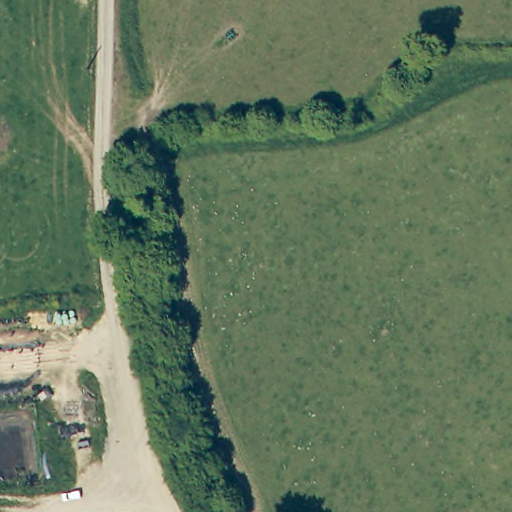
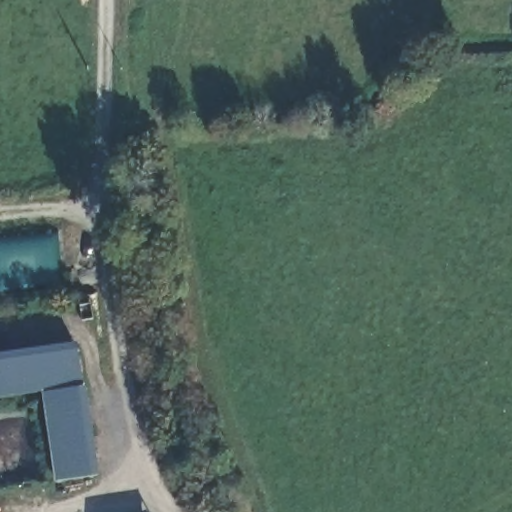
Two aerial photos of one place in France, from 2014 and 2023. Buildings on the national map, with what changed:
new [(81,387),(85,387),(98,474),(55,481),(43,391),(0,397),(0,353),(76,343),(81,387)]

